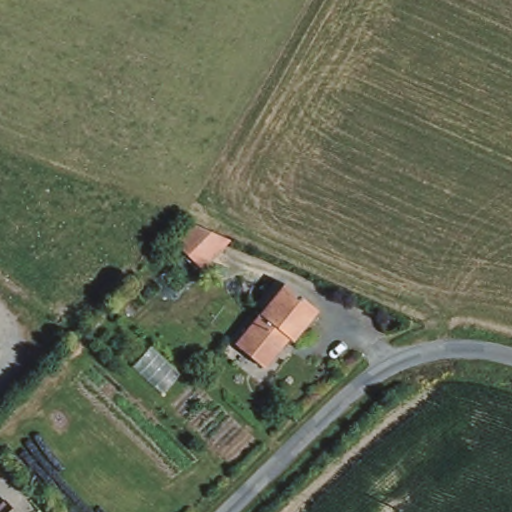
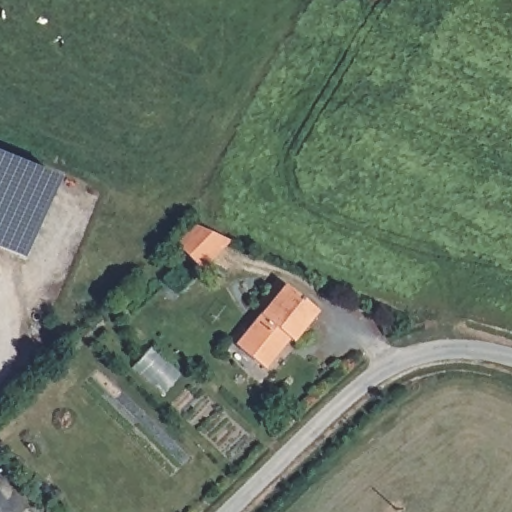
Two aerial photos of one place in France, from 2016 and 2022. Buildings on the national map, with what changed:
new [(24,255),(0,246),(0,154),(56,177),(24,255)]
unchanged [(190,221),(232,238),(200,271),(170,240),(190,221)]
unchanged [(315,312),(290,344),(285,339),(260,370),(231,346),(280,285),(315,312)]

